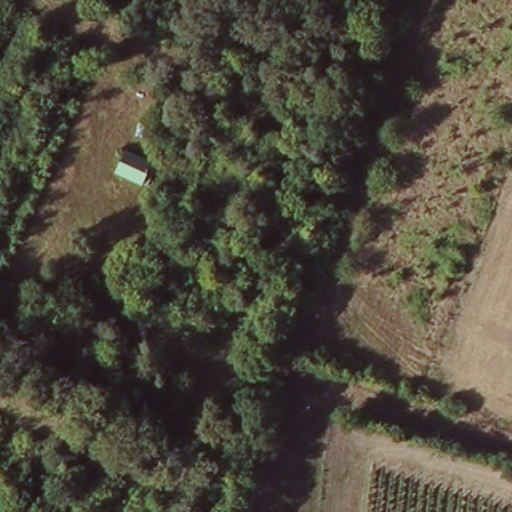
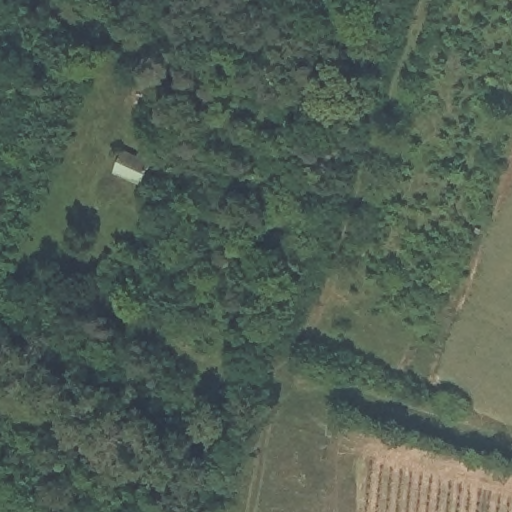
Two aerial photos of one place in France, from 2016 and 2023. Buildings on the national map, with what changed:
unchanged [(123,152),(151,166),(141,189),(113,174),(123,152)]

